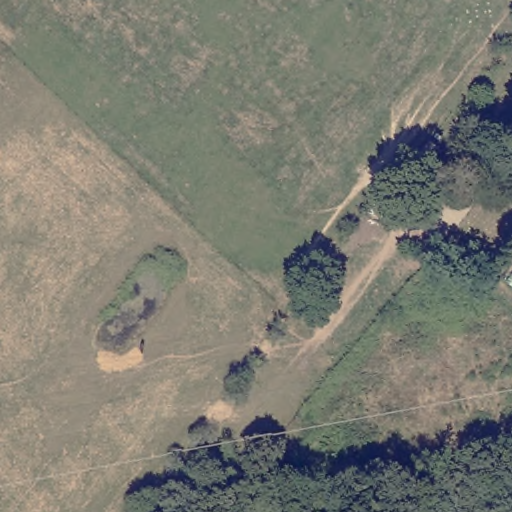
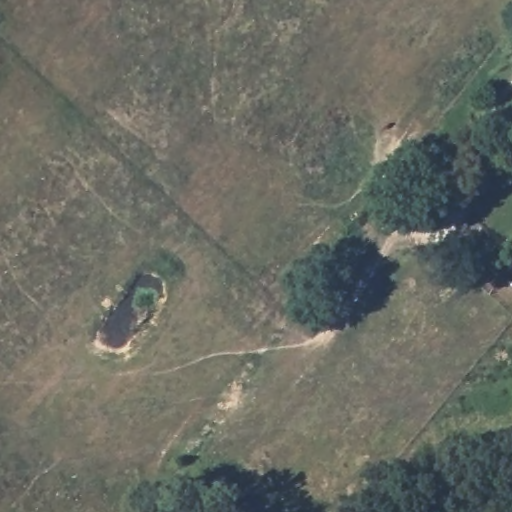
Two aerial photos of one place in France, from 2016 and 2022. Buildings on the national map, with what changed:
unchanged [(348,267),(338,281),(328,274),(338,260),(348,267)]

